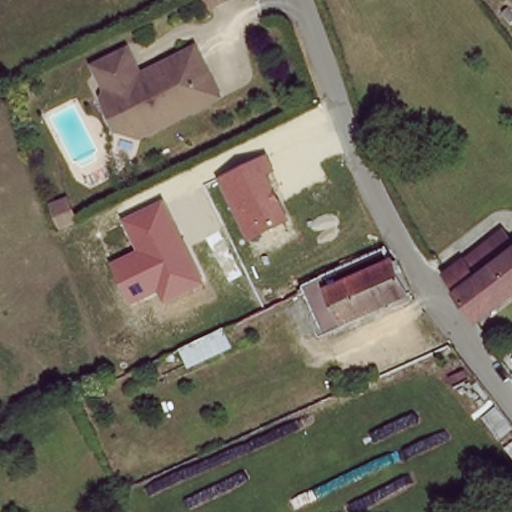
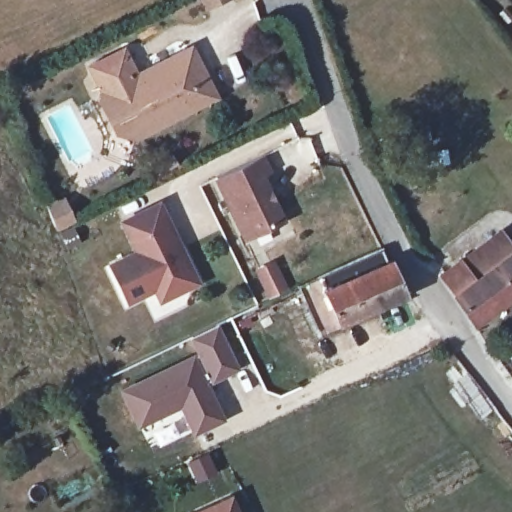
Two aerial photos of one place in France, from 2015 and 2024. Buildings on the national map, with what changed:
unchanged [(131,43),(142,67),(194,43),(219,97),(139,137),(114,129),(97,97),(102,93),(89,62),(131,43)]
unchanged [(243,240),(214,177),(263,155),(271,172),(264,175),(285,220),(243,240)]
unchanged [(200,283),(160,303),(154,292),(128,304),(107,262),(133,250),(119,219),(159,200),(200,283)]
unchanged [(441,269),(461,254),(486,237),(500,254),(512,246),(512,290),(474,318),(441,269)]
unchanged [(380,247),(383,246),(389,260),(393,259),(406,291),(321,331),(303,295),(298,297),(293,287),(380,247)]
demolished [(149,358),(177,346),(235,319),(241,332),(209,347),(183,359),(183,358),(156,372),(149,358)]
new [(191,435),(180,408),(137,428),(118,389),(196,353),(188,337),(215,324),(237,369),(206,383),(223,420),(191,435)]
demolished [(376,360),(408,346),(414,358),(399,365),(382,373),(376,360)]
new [(237,512),(191,512),(229,494),(237,512)]

